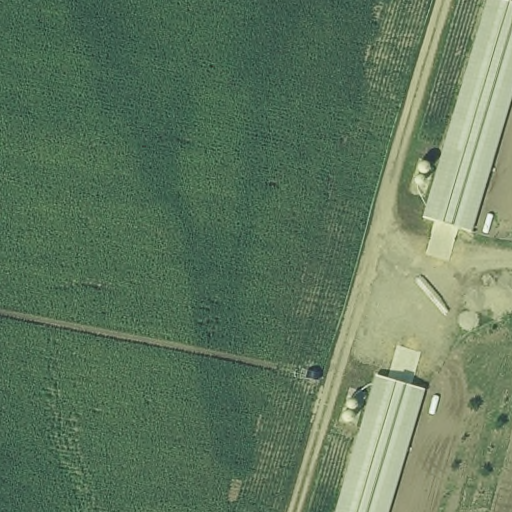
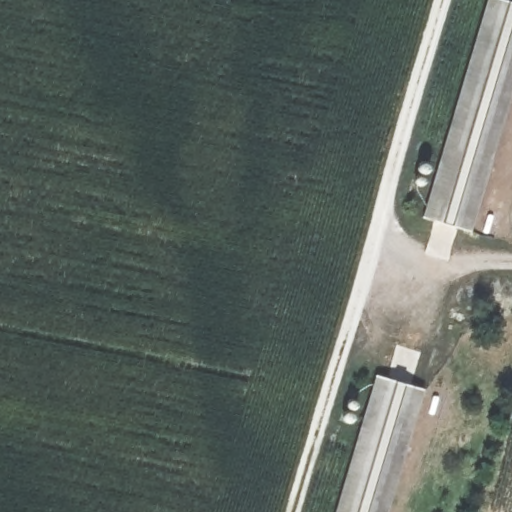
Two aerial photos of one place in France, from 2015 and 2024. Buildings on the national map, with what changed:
unchanged [(512,89),(470,232),(422,217),(486,0),(504,0),(512,2),(512,89)]
unchanged [(423,390),(387,512),(335,512),(375,376),(423,390)]

